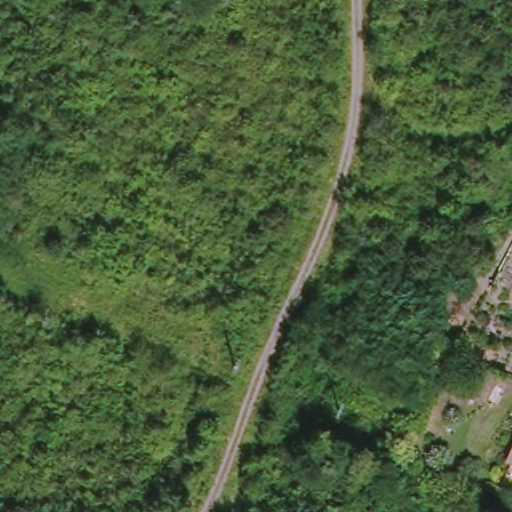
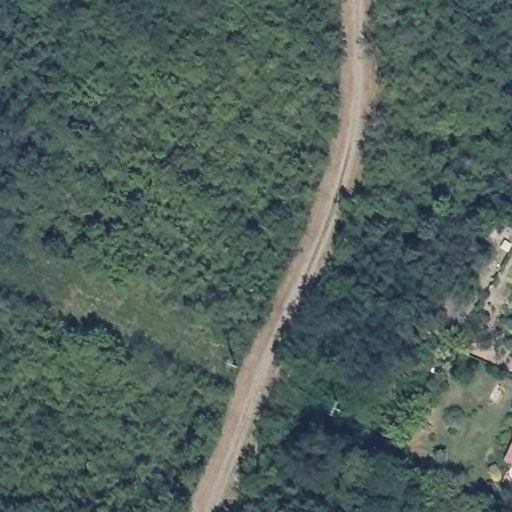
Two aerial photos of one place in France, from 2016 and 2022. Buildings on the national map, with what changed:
unchanged [(510,463),(512,459),(512,464),(510,463)]

